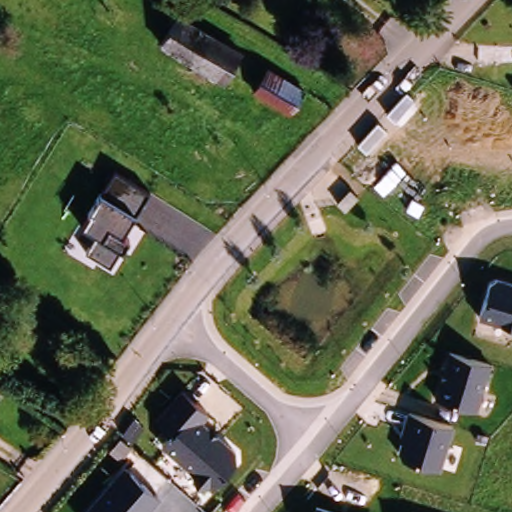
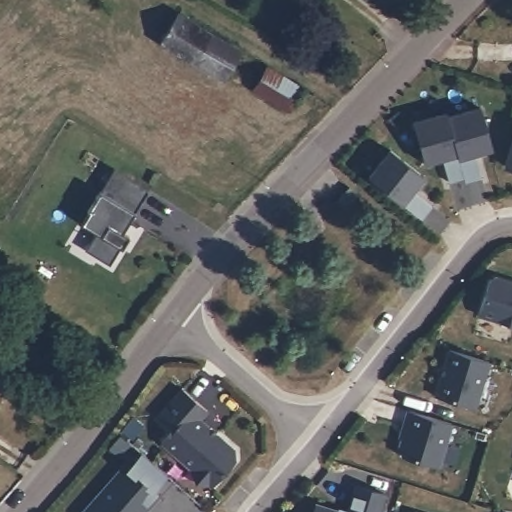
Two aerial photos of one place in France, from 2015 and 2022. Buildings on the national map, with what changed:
unchanged [(161,41),(178,13),(211,33),(194,60),(161,41)]
unchanged [(211,33),(240,50),(223,78),(194,60),(211,33)]
unchanged [(267,66),(301,87),(289,108),(255,88),(267,66)]
new [(445,113),(446,118),(480,108),(492,149),(472,154),(480,179),(464,183),(463,179),(447,183),(440,159),(422,164),(410,123),(445,113)]
new [(512,141),(512,168),(505,166),(512,141)]
new [(391,149),(424,175),(412,190),(432,206),(422,219),(368,176),(391,149)]
unchanged [(150,190),(137,212),(122,234),(129,238),(123,247),(111,263),(86,248),(96,231),(82,223),(101,190),(115,168),(150,190)]
unchanged [(480,316),(489,280),(497,274),(512,279),(512,325),(480,316)]
unchanged [(490,361),(476,409),(436,399),(450,349),(490,361)]
unchanged [(210,410),(203,420),(236,447),(235,461),(214,486),(211,484),(200,486),(190,478),(192,470),(162,443),(162,435),(170,427),(160,417),(183,390),(210,410)]
unchanged [(452,422),(440,469),(401,459),(398,451),(411,411),(452,422)]
unchanged [(159,495),(145,512),(80,512),(124,464),(159,495)]
unchanged [(314,512),(317,503),(348,512),(314,512)]

